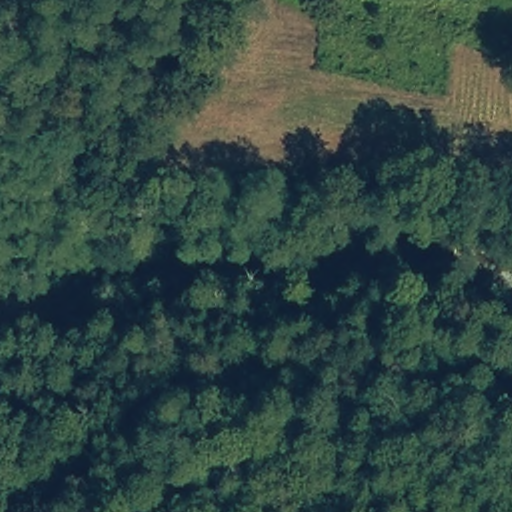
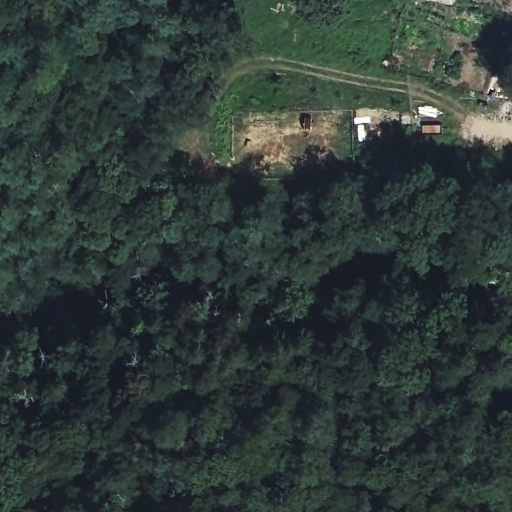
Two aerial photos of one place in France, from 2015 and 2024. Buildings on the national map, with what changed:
[]

